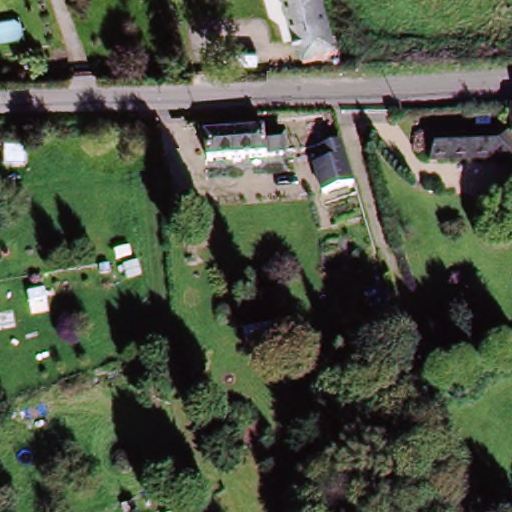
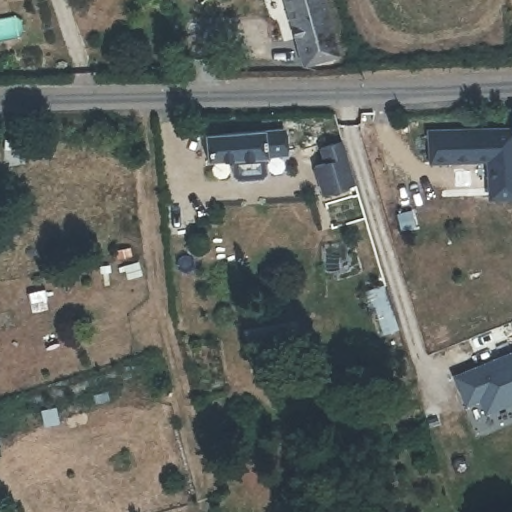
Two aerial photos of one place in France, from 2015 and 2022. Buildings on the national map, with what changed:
unchanged [(337,54),(330,57),(305,67),(303,67),(282,0),(321,0),(337,54)]
unchanged [(506,137),(507,127),(506,107),(512,107),(512,136),(506,137)]
unchanged [(423,127),(507,127),(506,137),(506,156),(424,157),(423,127)]
unchanged [(270,155),(200,164),(197,137),(269,131),(270,155)]
unchanged [(334,189),(319,143),(342,136),(356,182),(334,189)]
new [(482,416),(476,402),(463,407),(449,375),(512,350),(512,404),(482,416)]

